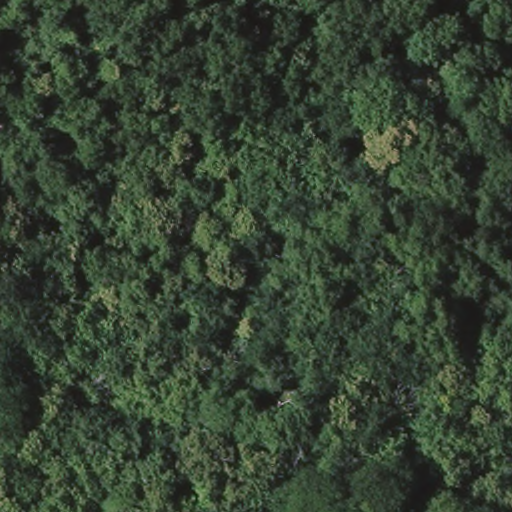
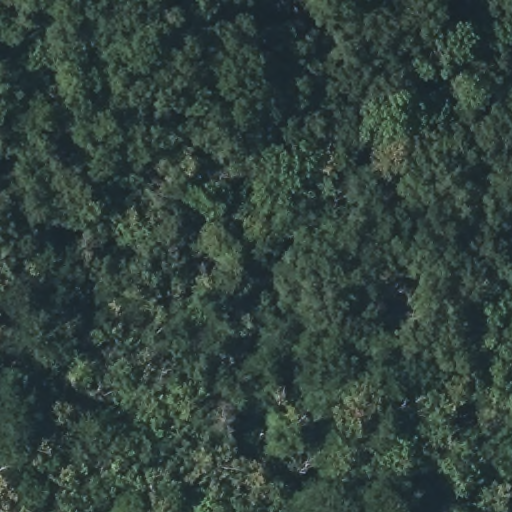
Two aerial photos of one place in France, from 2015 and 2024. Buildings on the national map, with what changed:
[]

